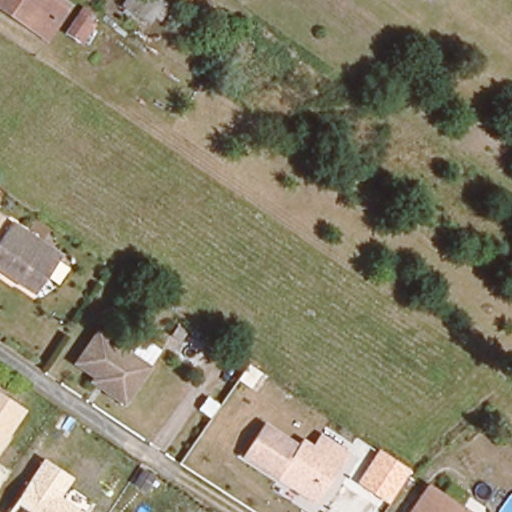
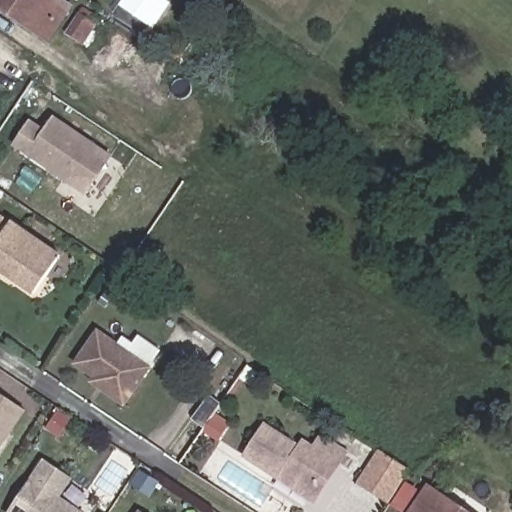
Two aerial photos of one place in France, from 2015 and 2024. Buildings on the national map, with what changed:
unchanged [(45,43),(0,12),(0,0),(58,0),(70,8),(45,43)]
unchanged [(78,42),(62,32),(76,13),(90,22),(78,42)]
new [(84,195),(11,145),(28,119),(42,128),(52,114),(112,155),(84,195)]
unchanged [(1,223),(10,230),(11,228),(59,260),(32,300),(13,288),(16,284),(4,275),(1,279),(0,279),(0,226),(1,223)]
unchanged [(84,386),(87,380),(66,367),(91,331),(146,368),(118,409),(84,386)]
unchanged [(0,449),(0,393),(26,410),(0,449)]
unchanged [(276,477),(242,452),(267,421),(295,442),(300,433),(313,443),(322,431),(348,451),(335,467),(309,500),(276,477)]
unchanged [(388,503),(358,483),(378,449),(410,470),(388,503)]
unchanged [(8,512),(43,458),(74,478),(61,497),(83,512),(8,512)]
unchanged [(431,484),(469,512),(410,512),(420,498),(431,484)]

